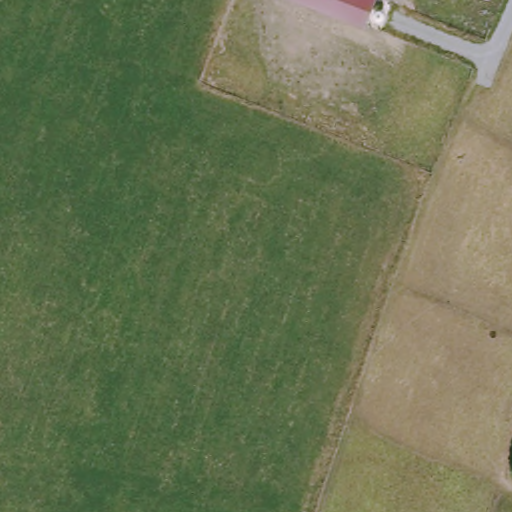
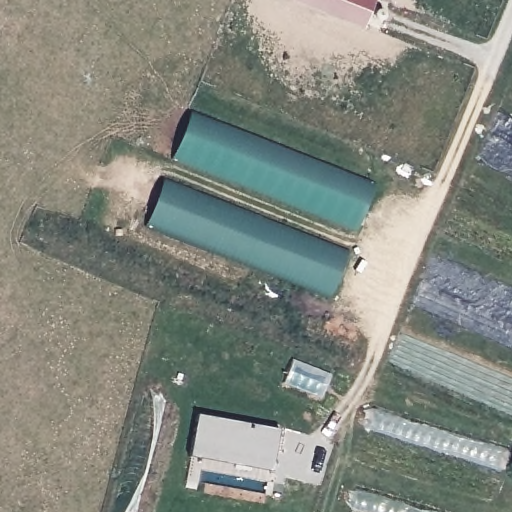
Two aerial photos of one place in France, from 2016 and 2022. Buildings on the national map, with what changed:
unchanged [(365,26),(294,0),(375,0),(365,26)]
new [(189,115),(374,185),(358,227),(174,155),(189,115)]
new [(150,219),(165,180),(347,255),(332,293),(150,219)]
new [(271,471),(190,456),(197,415),(278,430),(271,471)]

